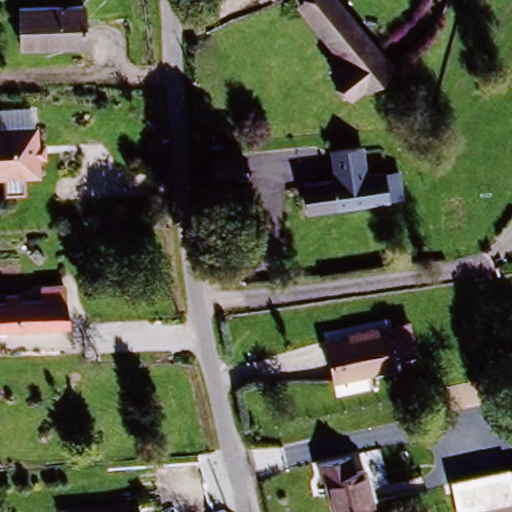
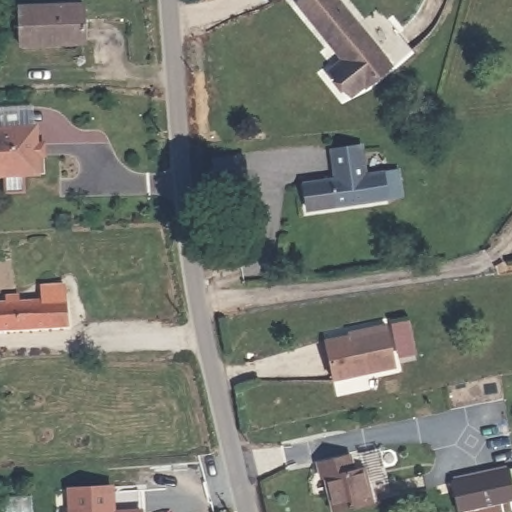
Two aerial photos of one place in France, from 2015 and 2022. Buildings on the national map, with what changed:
unchanged [(362,96),(338,66),(350,56),(306,0),(342,0),(397,68),(362,96)]
unchanged [(82,13),(84,48),(22,50),(20,15),(82,13)]
unchanged [(0,125),(37,121),(42,167),(0,171),(0,125)]
unchanged [(269,190),(239,193),(237,172),(265,167),(269,190)]
unchanged [(385,174),(388,197),(314,207),(311,184),(385,174)]
unchanged [(0,304),(1,304),(0,300),(0,292),(24,290),(26,302),(42,300),(41,289),(63,287),(64,298),(67,325),(0,332),(0,304)]
unchanged [(344,377),(336,342),(366,335),(365,332),(396,324),(405,361),(344,377)]
unchanged [(508,467),(506,453),(512,452),(512,489),(508,467)]
unchanged [(321,487),(317,471),(350,463),(354,478),(362,475),(372,510),(366,512),(333,512),(327,486),(321,487)]
unchanged [(507,503),(510,512),(458,512),(452,486),(484,478),(482,472),(508,467),(512,489),(512,502),(507,503)]
new [(100,512),(71,512),(67,488),(114,484),(115,493),(139,491),(139,508),(100,512)]
unchanged [(144,512),(99,512),(144,507),(144,512)]

